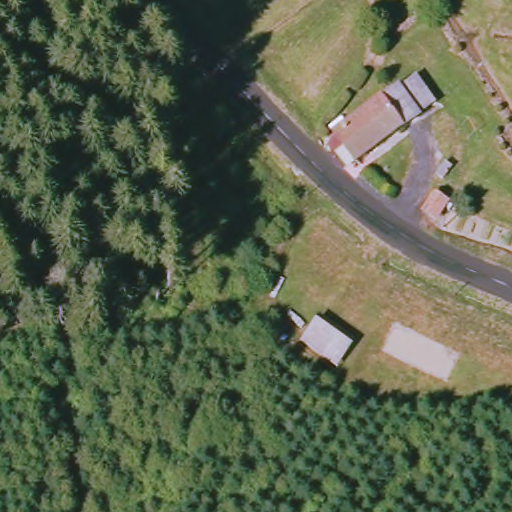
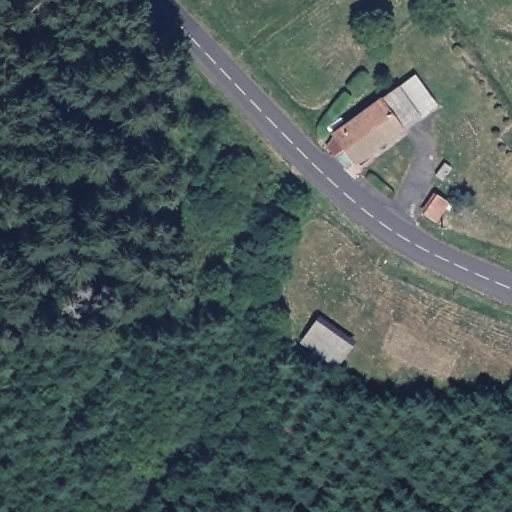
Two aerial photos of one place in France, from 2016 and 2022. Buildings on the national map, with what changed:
unchanged [(334,126),(338,129),(382,94),(388,102),(401,93),(412,110),(400,120),(357,156),(346,141),(335,155),(323,144),(334,126)]
unchanged [(314,322),(353,349),(337,373),(299,345),(314,322)]

